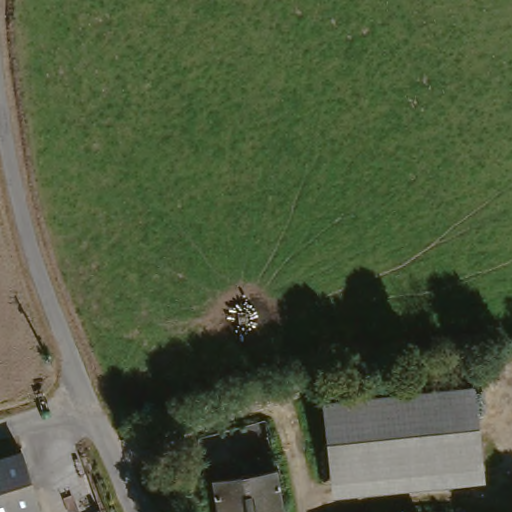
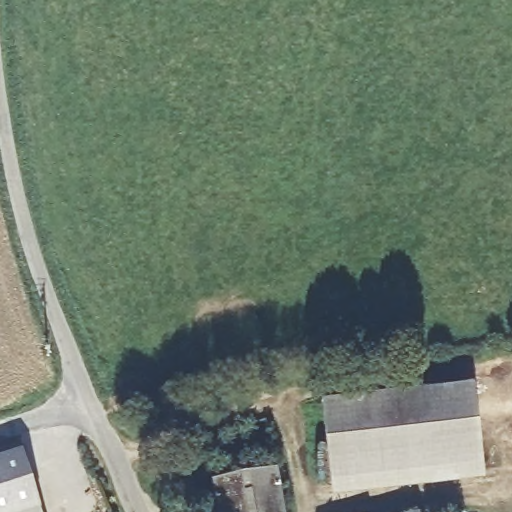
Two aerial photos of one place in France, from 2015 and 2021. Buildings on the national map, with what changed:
unchanged [(473,386),(486,481),(333,497),(322,404),(473,386)]
unchanged [(31,456),(44,510),(36,512),(0,512),(0,464),(31,456)]
unchanged [(217,512),(214,493),(279,481),(285,512),(217,512)]
unchanged [(36,512),(44,510),(44,512),(36,512)]
unchanged [(419,512),(417,512),(418,511),(419,512)]

